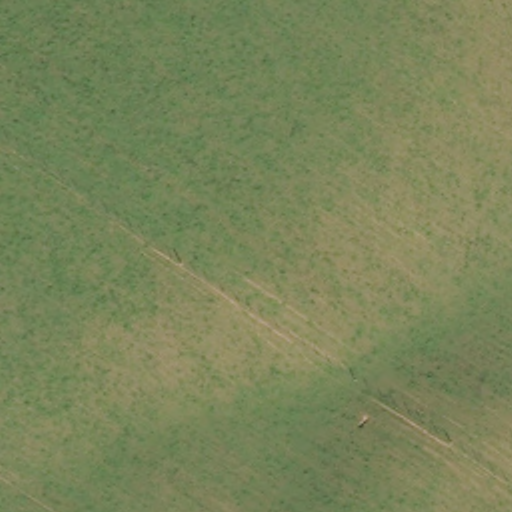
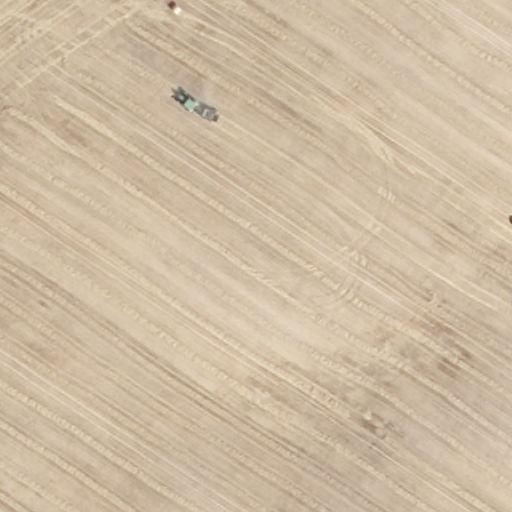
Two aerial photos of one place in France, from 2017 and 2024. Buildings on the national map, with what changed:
[]

